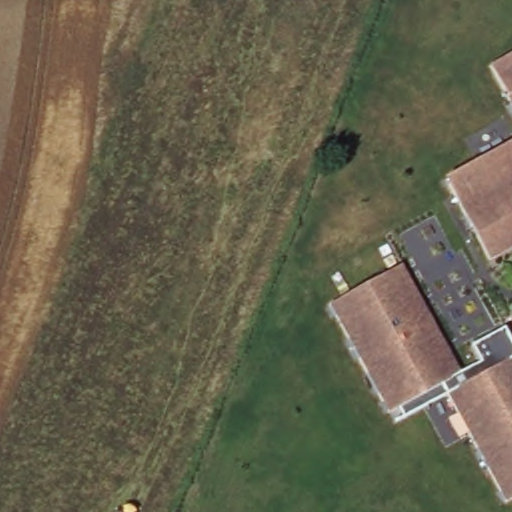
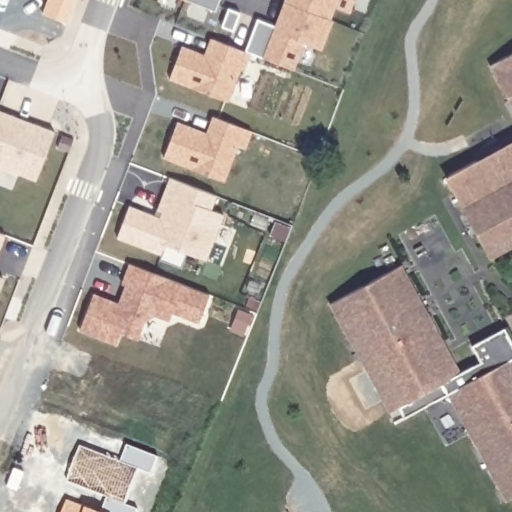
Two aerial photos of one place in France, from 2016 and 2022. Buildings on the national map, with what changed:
new [(43,13),(47,0),(75,0),(67,22),(43,13)]
new [(215,10),(190,0),(219,0),(215,10)]
new [(350,12),(336,7),(322,50),(304,42),(294,69),(245,51),(257,19),(275,27),(285,0),(355,0),(350,12)]
new [(172,78),(183,47),(238,67),(226,99),(172,78)]
unchanged [(493,65),(512,55),(512,100),(493,65)]
new [(34,125),(53,132),(35,181),(0,168),(0,111),(14,117),(34,125)]
new [(246,149),(238,146),(225,182),(164,157),(177,121),(207,132),(213,116),(252,130),(246,149)]
unchanged [(492,260),(451,184),(454,182),(451,176),(478,161),(512,143),(512,249),(492,260)]
new [(154,217),(156,210),(169,178),(215,196),(209,210),(222,215),(205,261),(186,254),(180,268),(158,260),(160,255),(116,238),(128,207),(154,217)]
new [(0,247),(0,234),(4,236),(0,247)]
new [(91,294),(118,305),(126,286),(119,283),(127,264),(207,295),(196,322),(170,312),(167,321),(153,316),(142,320),(135,339),(118,332),(114,344),(77,330),(91,294)]
unchanged [(464,373),(484,362),(475,346),(508,328),(512,336),(512,500),(509,501),(451,394),(406,418),(401,407),(392,412),(333,304),(405,265),(464,373)]
new [(0,286),(0,278),(2,279),(0,286)]

